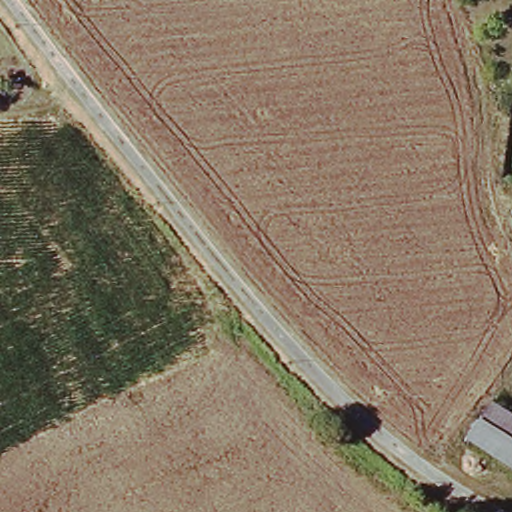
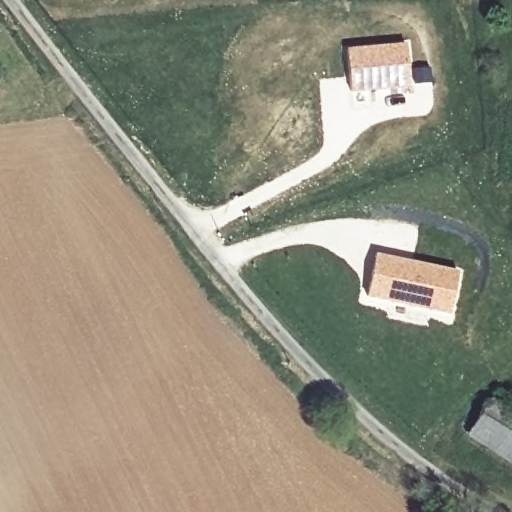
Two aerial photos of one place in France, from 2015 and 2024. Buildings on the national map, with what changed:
new [(408,41),(411,83),(408,84),(408,90),(349,93),(345,47),(408,41)]
new [(375,251),(459,270),(450,314),(365,296),(375,251)]
unchanged [(512,410),(512,467),(471,438),(496,399),(512,410)]

